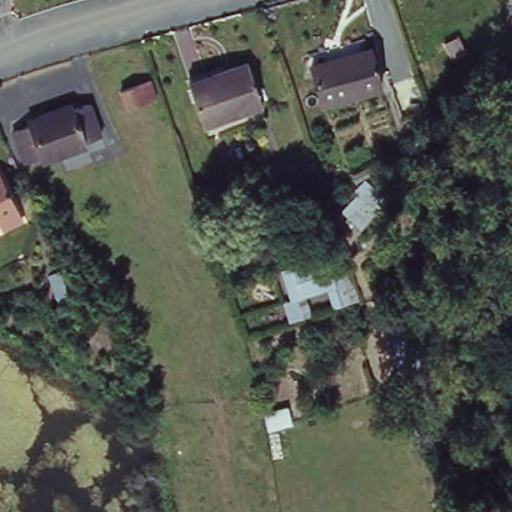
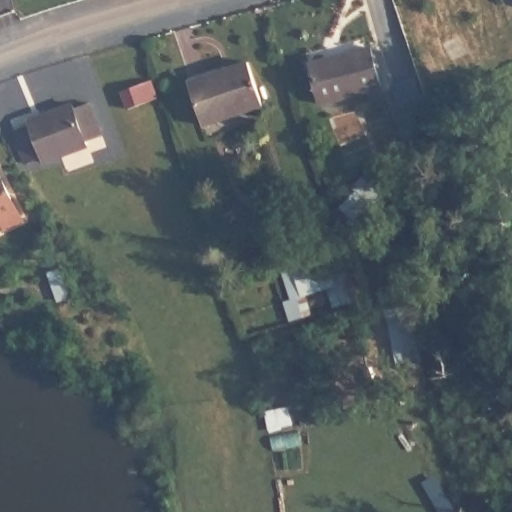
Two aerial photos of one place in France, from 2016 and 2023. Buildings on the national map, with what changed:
unchanged [(354,51),(366,91),(323,104),(312,64),(354,51)]
unchanged [(253,62),(266,110),(203,131),(189,85),(253,62)]
unchanged [(151,74),(157,94),(122,103),(116,84),(151,74)]
unchanged [(43,112),(72,102),(75,107),(86,102),(98,135),(86,138),(88,146),(59,157),(43,112)]
unchanged [(38,165),(36,159),(19,163),(7,130),(23,125),(21,119),(43,112),(59,157),(38,165)]
unchanged [(354,166),(350,161),(364,151),(384,178),(355,201),(338,179),(354,166)]
unchanged [(2,225),(0,220),(0,174),(21,216),(2,225)]
unchanged [(362,301),(336,311),(330,292),(308,300),(315,320),(289,327),(281,302),(287,298),(279,271),(341,249),(362,301)]

